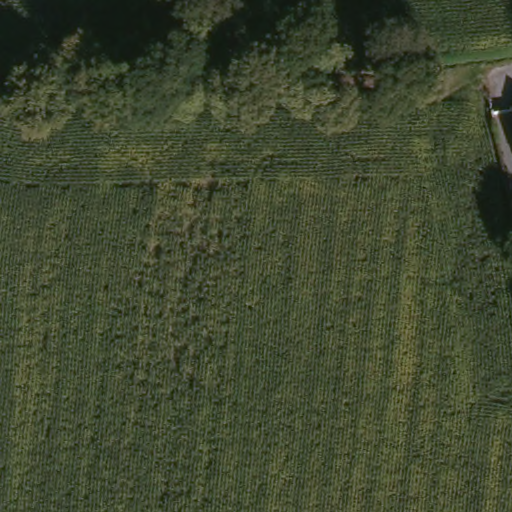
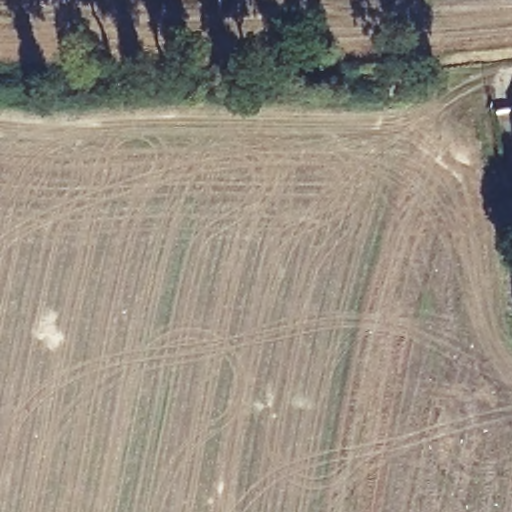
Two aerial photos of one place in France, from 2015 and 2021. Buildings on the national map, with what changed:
unchanged [(507,101),(512,100),(512,128),(507,101)]

